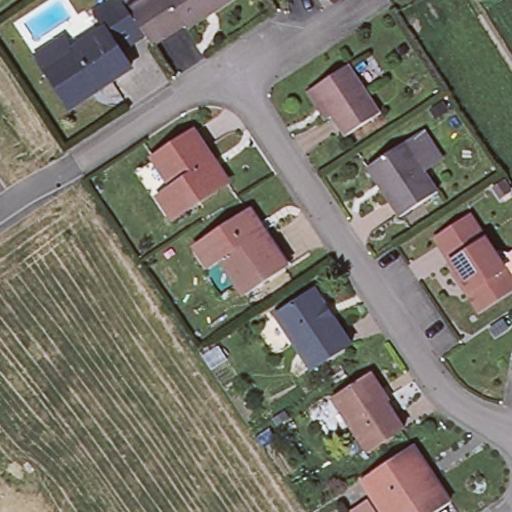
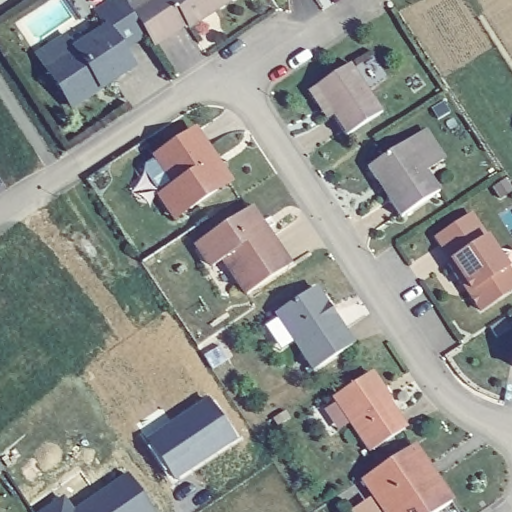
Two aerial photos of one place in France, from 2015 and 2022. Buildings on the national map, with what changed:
unchanged [(94,16),(117,0),(144,41),(120,56),(105,34),(94,16)]
unchanged [(166,0),(236,0),(188,32),(185,28),(167,40),(152,51),(124,7),(134,0),(158,0),(162,5),(167,1),(166,0)]
unchanged [(67,107),(45,73),(105,34),(120,56),(132,73),(99,94),(70,113),(67,107)]
unchanged [(350,62),(382,111),(347,134),(315,86),(350,62)]
unchanged [(154,157),(194,131),(229,182),(174,219),(173,217),(159,197),(174,187),(155,160),(154,157)]
unchanged [(405,145),(407,147),(425,135),(443,162),(425,175),(440,195),(402,221),(370,170),(405,145)]
unchanged [(215,268),(200,245),(252,210),(290,266),(250,294),(226,261),(215,268)]
unchanged [(454,265),(438,242),(472,219),(496,255),(510,257),(507,272),(512,279),(512,294),(482,315),(470,296),(473,294),(465,281),(460,283),(450,268),(454,265)]
unchanged [(312,287),(350,344),(310,370),(273,313),(312,287)]
unchanged [(511,365),(512,361),(512,366),(511,365)]
unchanged [(366,375),(383,402),(385,401),(386,402),(404,429),(368,451),(332,397),(366,375)]
new [(215,401),(241,439),(177,478),(151,438),(215,401)]
unchanged [(432,478),(449,502),(435,512),(383,512),(360,479),(410,445),(425,466),(432,478)]
new [(74,511),(131,476),(155,512),(41,512),(65,498),(74,511)]

